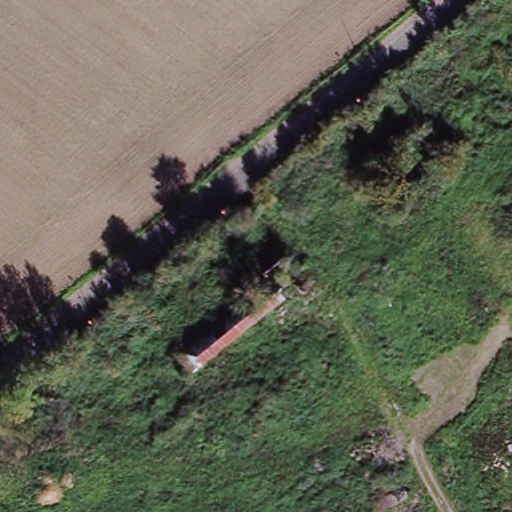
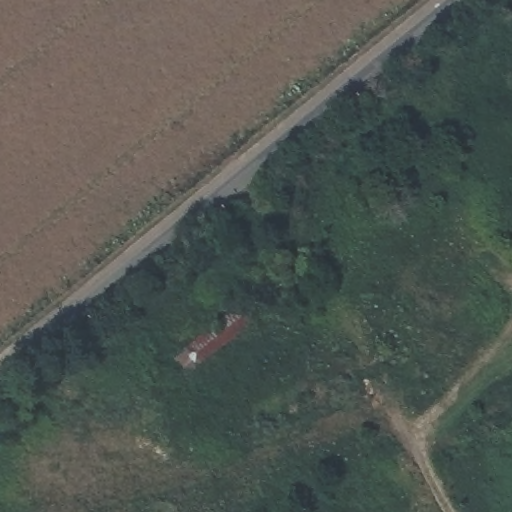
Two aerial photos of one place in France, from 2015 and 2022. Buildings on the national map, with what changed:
unchanged [(293,292),(198,369),(187,353),(280,277),(293,292)]

